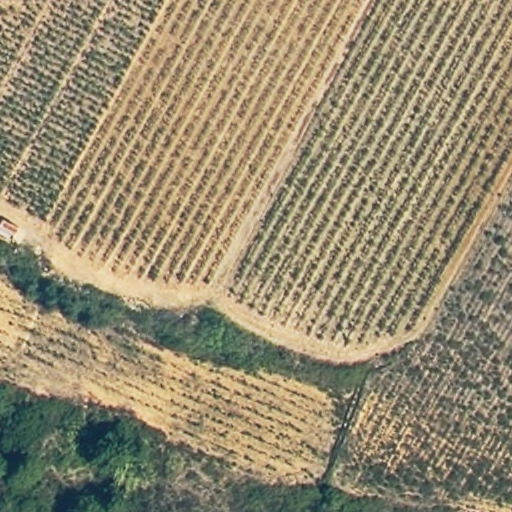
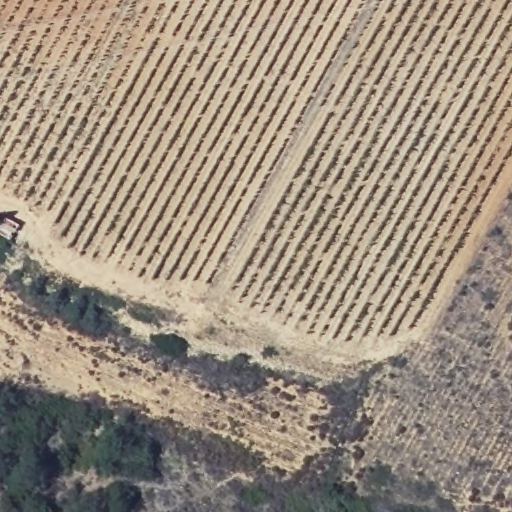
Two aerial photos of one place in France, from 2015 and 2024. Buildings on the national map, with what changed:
unchanged [(19,224),(10,240),(0,236),(0,220),(2,215),(19,224)]

